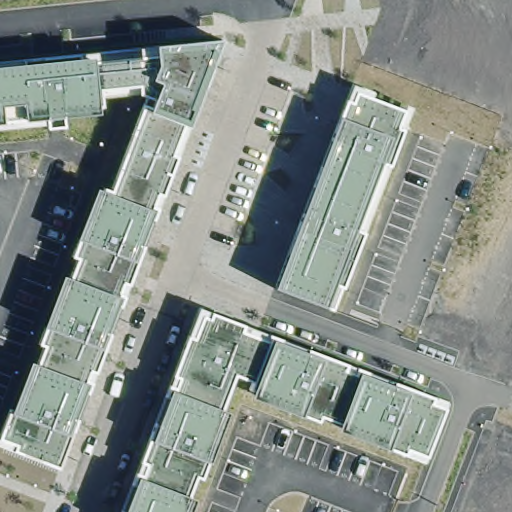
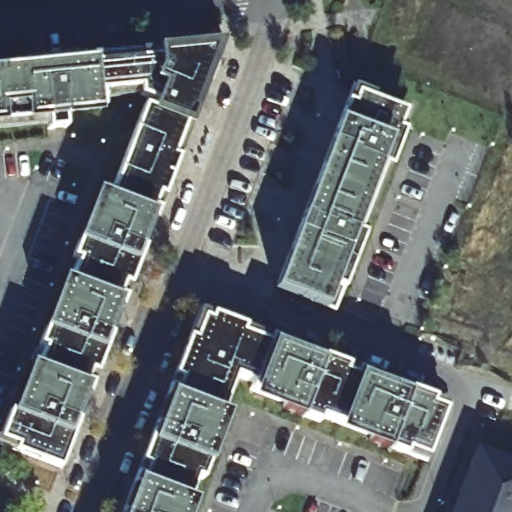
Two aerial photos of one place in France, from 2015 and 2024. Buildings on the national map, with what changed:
unchanged [(155,46),(221,41),(190,127),(187,128),(164,194),(157,192),(151,207),(156,209),(152,219),(155,220),(145,248),(141,247),(129,283),(121,281),(118,294),(124,298),(112,334),(108,333),(96,371),(90,369),(87,382),(90,384),(80,420),(75,419),(59,468),(13,450),(16,444),(0,439),(0,436),(8,413),(11,411),(30,359),(38,364),(38,362),(44,346),(38,344),(44,327),(62,276),(68,278),(70,276),(76,258),(72,256),(77,239),(95,189),(101,191),(101,189),(110,191),(141,106),(150,111),(155,98),(152,98),(140,95),(138,86),(99,89),(100,107),(98,107),(99,114),(62,117),(63,127),(47,129),(47,123),(0,128),(0,62),(151,47),(155,46)]
unchanged [(339,119),(346,101),(352,85),(373,92),(371,98),(404,110),(405,106),(412,108),(403,130),(390,167),(382,164),(357,230),(362,233),(341,287),(334,312),(325,308),(275,288),(339,119)]
unchanged [(405,449),(402,453),(388,448),(388,447),(387,449),(338,430),(340,423),(321,416),(318,422),(303,416),(300,416),(251,397),(256,381),(255,381),(232,375),(220,408),(217,408),(226,412),(209,462),(205,463),(200,476),(190,472),(182,494),(194,499),(189,512),(121,512),(135,474),(144,476),(147,464),(140,461),(168,386),(177,389),(180,378),(173,375),(198,308),(212,313),(432,399),(430,405),(443,408),(425,456),(405,449)]
new [(511,450),(512,450),(512,512),(449,512),(473,447),(508,460),(511,450)]

